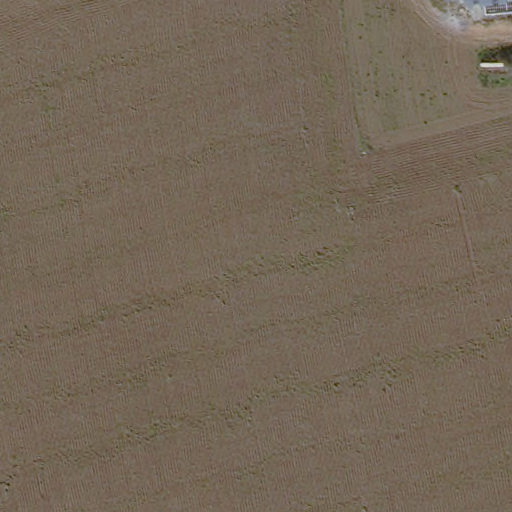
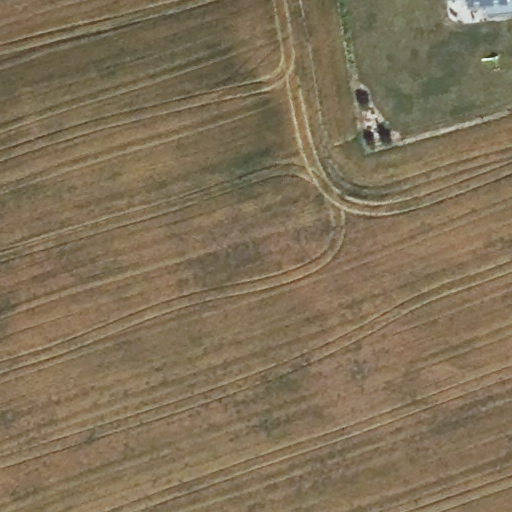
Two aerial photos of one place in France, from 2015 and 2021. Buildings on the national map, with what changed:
unchanged [(467,0),(486,0),(467,1),(467,0)]
unchanged [(512,0),(512,9),(487,11),(486,0),(512,0)]

